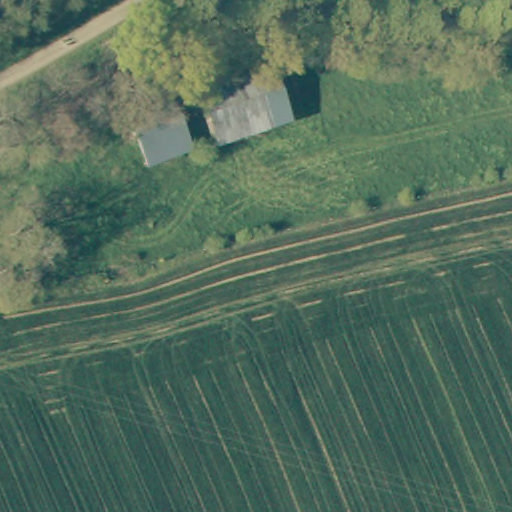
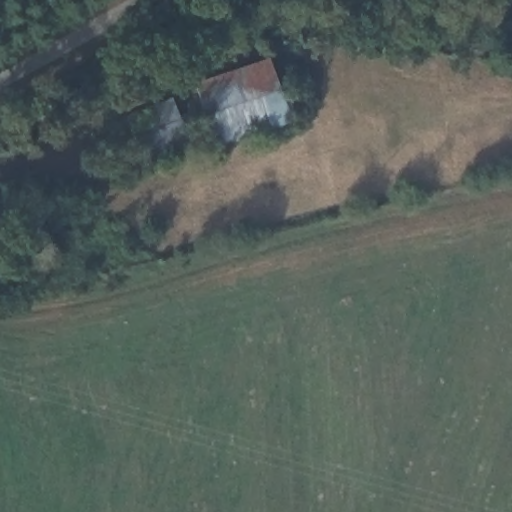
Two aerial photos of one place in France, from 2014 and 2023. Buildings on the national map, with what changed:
unchanged [(203,93),(281,73),(298,128),(216,149),(203,93)]
unchanged [(127,118),(170,99),(194,147),(147,163),(127,118)]

